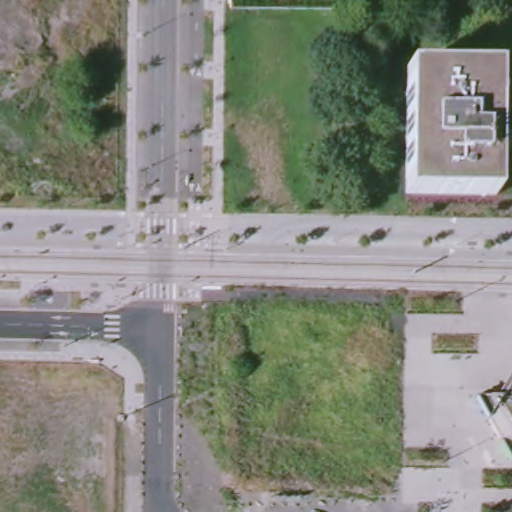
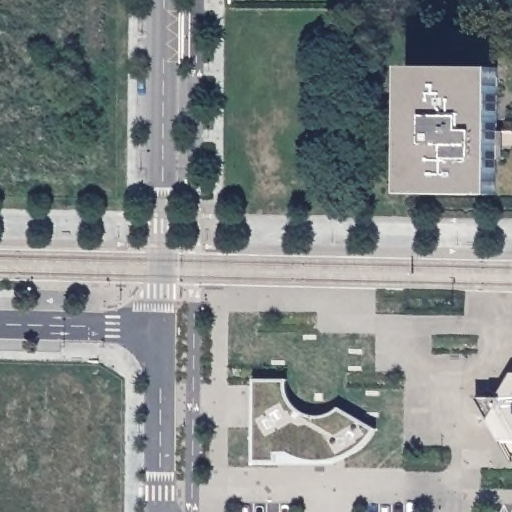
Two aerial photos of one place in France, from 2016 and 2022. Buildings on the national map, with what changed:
unchanged [(496,66),(495,194),(405,194),(407,66),(496,66)]
unchanged [(496,396),(510,373),(512,369),(512,458),(476,397),(496,396)]
new [(287,379),(287,388),(288,397),(292,405),(300,412),(310,416),(322,417),(332,414),(339,409),(375,429),(366,441),(355,451),(337,458),(320,461),(307,461),(290,452),(277,454),(277,462),(253,463),(253,379),(287,379)]

